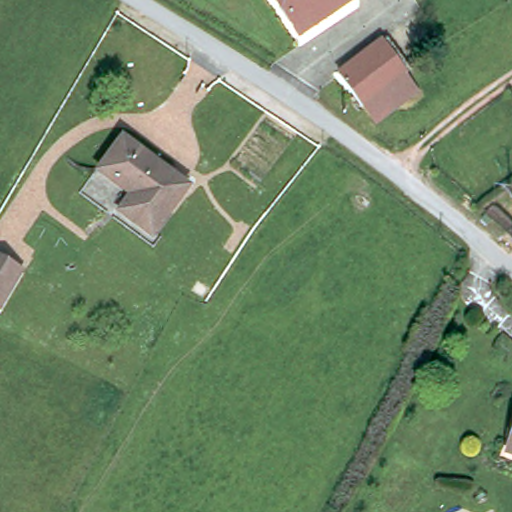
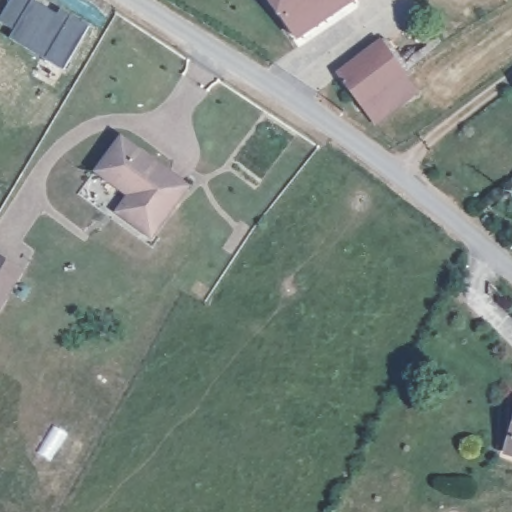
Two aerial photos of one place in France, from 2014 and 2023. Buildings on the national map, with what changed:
new [(57,14),(60,9),(71,15),(90,26),(64,70),(10,38),(14,30),(0,22),(0,18),(11,0),(34,0),(57,14)]
unchanged [(301,42),(273,0),(363,0),(301,42)]
unchanged [(343,72),(385,41),(421,90),(379,121),(343,72)]
unchanged [(150,234),(120,211),(132,195),(99,171),(122,140),(185,186),(150,234)]
unchanged [(3,312),(0,311),(0,261),(24,276),(3,312)]

